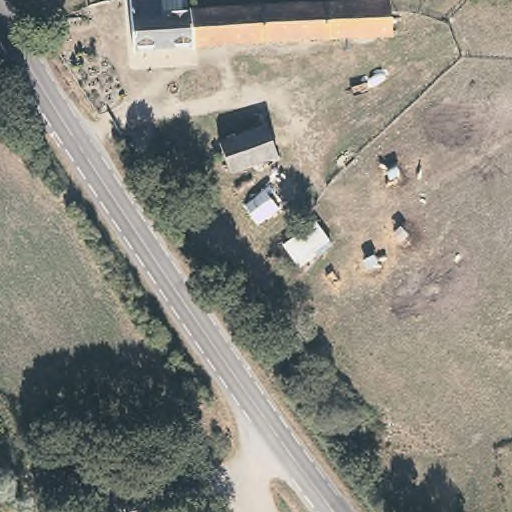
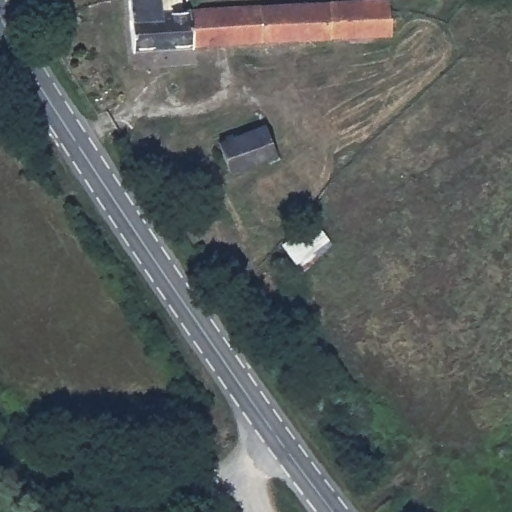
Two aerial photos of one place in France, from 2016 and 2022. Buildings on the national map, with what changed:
unchanged [(168,0),(125,4),(125,0),(168,0)]
unchanged [(389,0),(389,16),(389,25),(389,34),(131,60),(125,4),(168,0),(389,0)]
unchanged [(274,160),(220,165),(218,143),(272,138),(274,160)]

